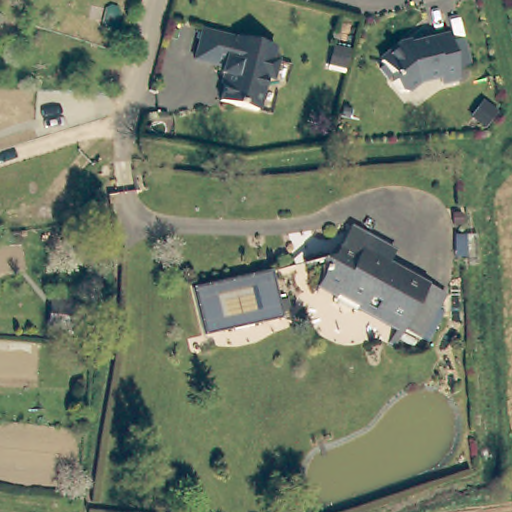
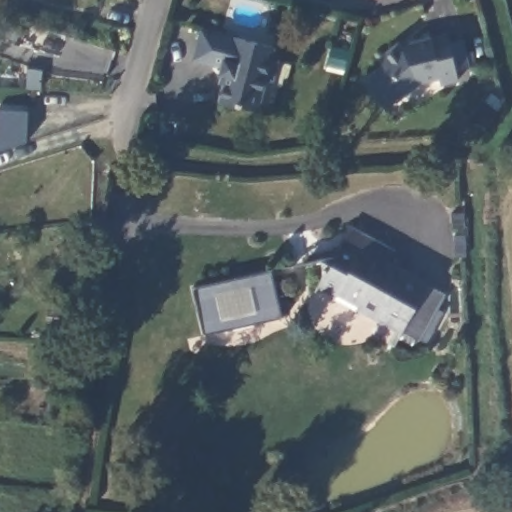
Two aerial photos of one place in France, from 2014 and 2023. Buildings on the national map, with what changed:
unchanged [(450,41),(464,37),(471,66),(457,69),(459,79),(442,83),(440,77),(420,82),(407,92),(401,91),(392,81),(393,76),(381,61),(401,44),(447,33),(450,41)]
unchanged [(236,44),(236,42),(273,51),(271,63),(277,65),(273,83),(266,82),(258,116),(220,106),(227,81),(222,80),(224,73),(195,65),(202,36),(236,44)]
unchanged [(352,52),(348,70),(333,66),(338,48),(352,52)]
new [(26,146),(0,146),(0,109),(22,111),(26,146)]
unchanged [(380,239),(372,253),(450,294),(420,348),(337,301),(341,294),(321,283),(325,270),(323,261),(338,256),(354,225),(380,239)]
unchanged [(283,301),(286,312),(277,315),(278,320),(201,337),(188,288),(267,270),(275,303),(283,301)]

